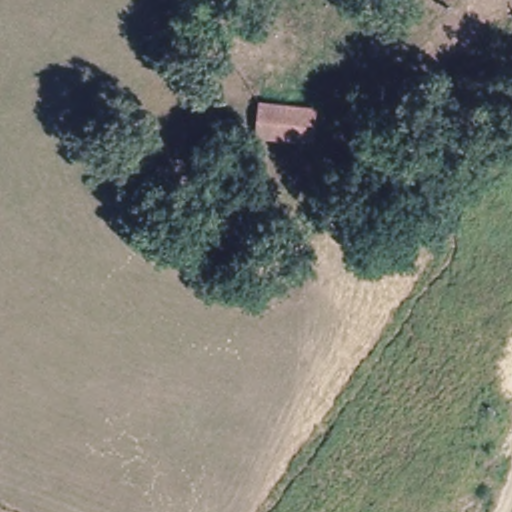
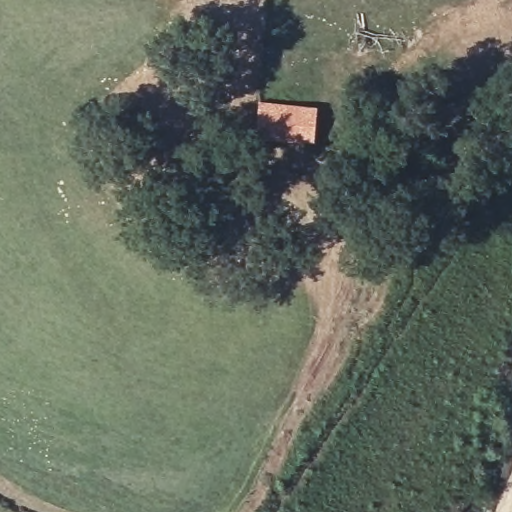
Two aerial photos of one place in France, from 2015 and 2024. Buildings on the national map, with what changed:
unchanged [(264,91),(316,95),(314,130),(261,128),(264,91)]

